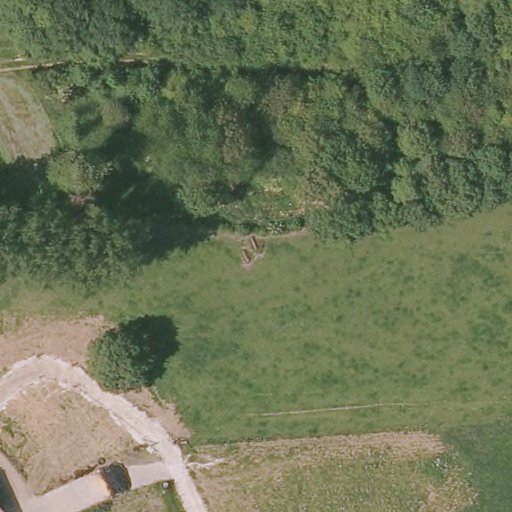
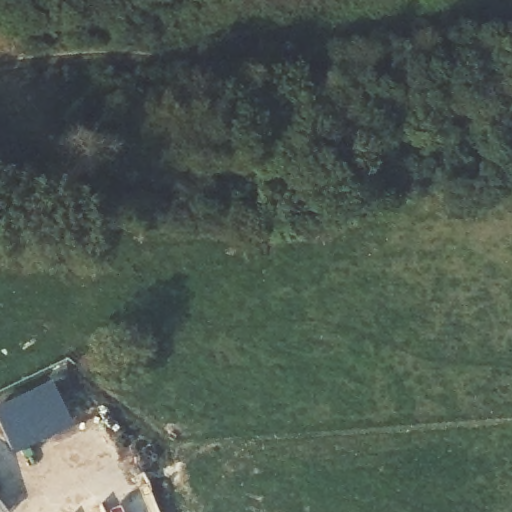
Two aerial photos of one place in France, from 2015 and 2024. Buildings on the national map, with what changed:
new [(0,424),(0,410),(51,384),(73,429),(14,455),(0,424)]
demolished [(0,512),(0,504),(7,512),(0,512)]

